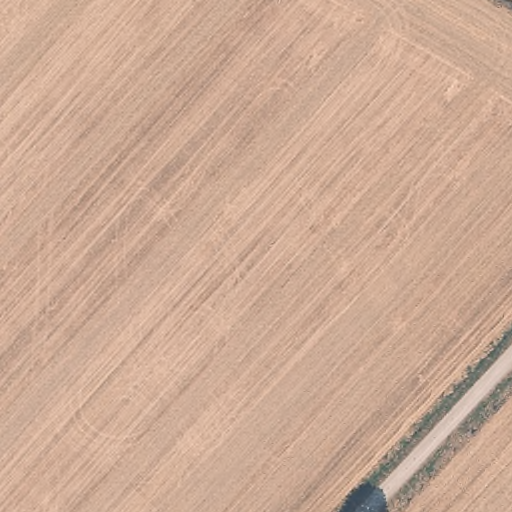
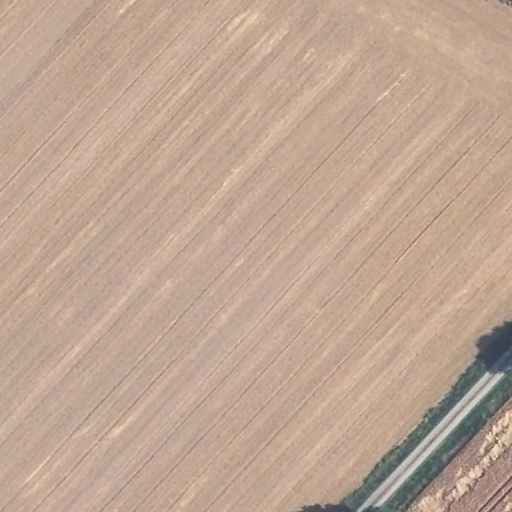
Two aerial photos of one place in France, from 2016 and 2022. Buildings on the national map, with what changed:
[]

